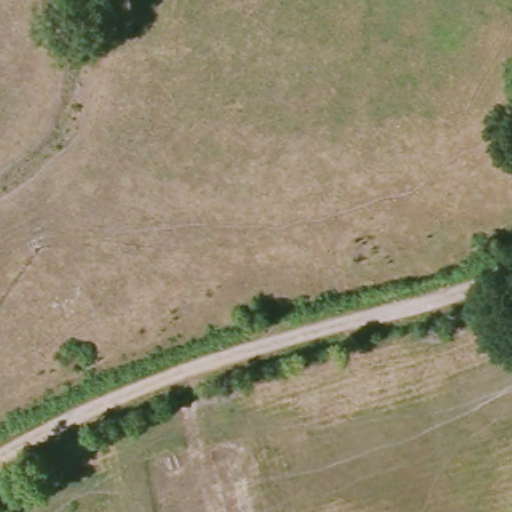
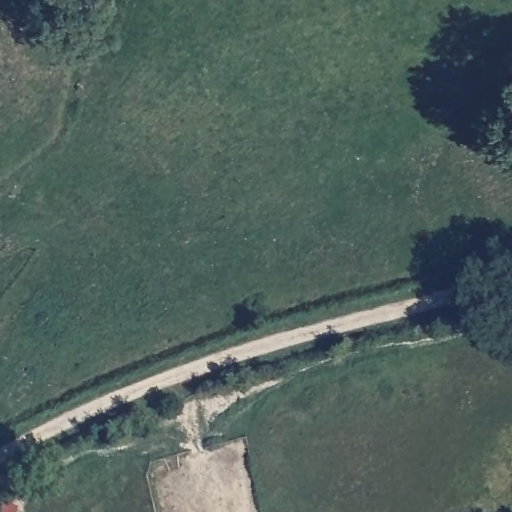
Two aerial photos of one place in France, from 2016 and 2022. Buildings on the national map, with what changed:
[]

